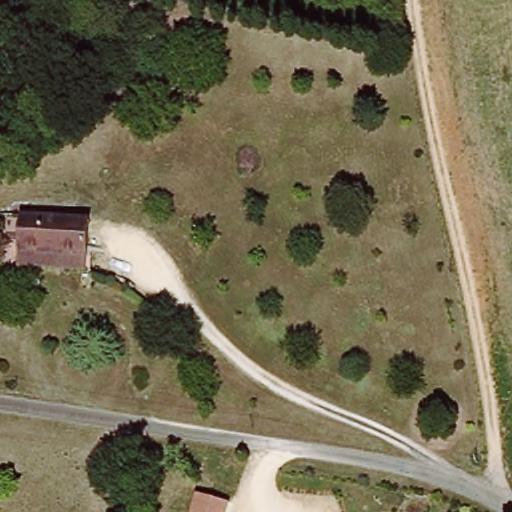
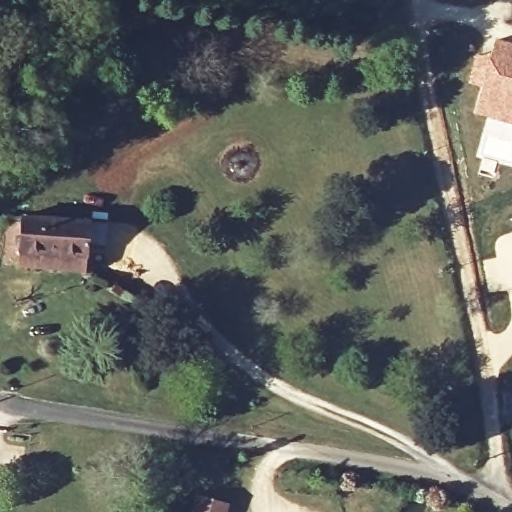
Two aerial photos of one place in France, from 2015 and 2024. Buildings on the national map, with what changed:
new [(489,56),(494,38),(512,43),(512,125),(472,113),(481,86),(468,82),(476,53),(489,56)]
unchanged [(42,265),(25,265),(24,220),(87,219),(89,253),(90,264),(42,265)]
unchanged [(230,505),(228,512),(192,512),(196,496),(230,505)]

